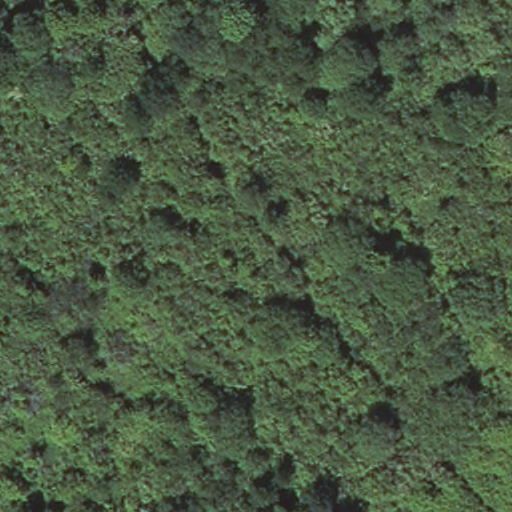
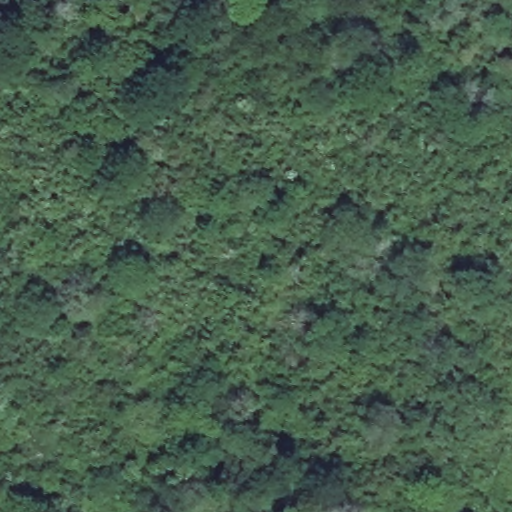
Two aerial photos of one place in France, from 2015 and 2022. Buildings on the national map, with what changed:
[]

